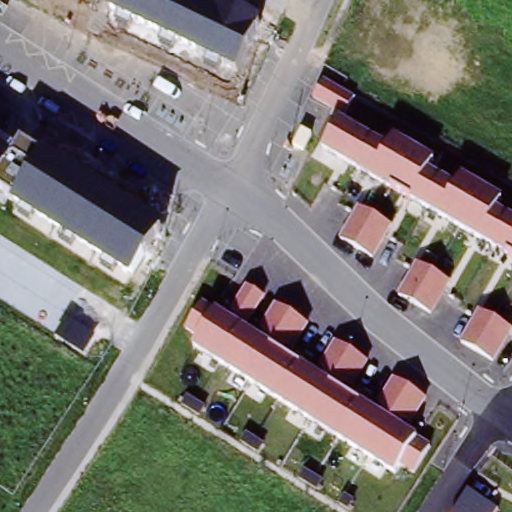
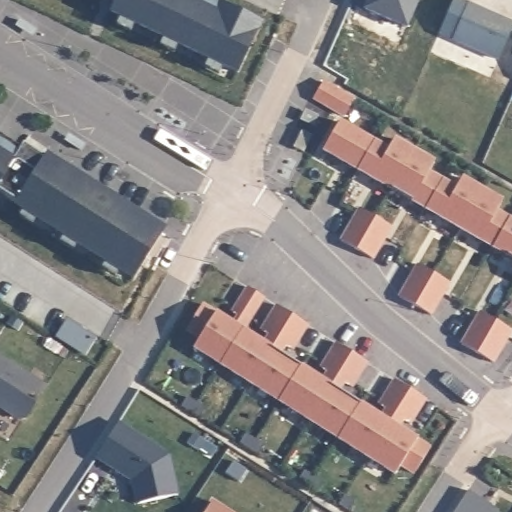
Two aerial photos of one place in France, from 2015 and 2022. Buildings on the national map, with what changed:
unchanged [(262,26),(240,76),(110,17),(115,7),(100,0),(209,0),(262,26)]
new [(407,28),(364,11),(352,4),(354,0),(420,0),(407,28)]
new [(512,24),(512,29),(498,61),(453,41),(469,5),(512,24)]
unchanged [(324,151),(341,120),(390,149),(396,139),(435,162),(429,172),(457,187),(462,177),(504,201),(498,210),(512,217),(512,260),(324,151)]
unchanged [(25,142),(167,232),(140,282),(0,194),(0,141),(18,152),(25,142)]
unchanged [(392,227),(373,260),(340,240),(357,208),(392,227)]
unchanged [(450,282),(430,315),(397,297),(416,263),(450,282)]
unchanged [(232,321),(237,314),(232,309),(246,286),(265,297),(246,328),(263,340),(267,333),(260,327),(277,304),(309,325),(293,349),(287,346),(284,352),(323,377),(327,371),(321,366),(335,342),(367,362),(352,386),(345,382),(343,387),(342,388),(380,412),(384,407),(378,403),(395,378),(427,400),(411,423),(406,420),(402,426),(432,444),(413,474),(403,467),(395,477),(193,349),(202,337),(186,328),(202,302),(232,321)]
unchanged [(512,329),(512,332),(495,363),(460,343),(478,311),(512,329)]
new [(26,420),(20,422),(0,409),(0,359),(46,388),(26,420)]
new [(189,398),(205,408),(200,417),(183,407),(189,398)]
new [(97,458),(118,425),(168,457),(177,497),(138,505),(133,482),(97,458)]
new [(247,436),(264,446),(259,455),(242,444),(247,436)]
new [(305,472),(322,482),(317,491),(300,481),(305,472)]
unchanged [(498,510),(497,512),(455,512),(469,491),(498,510)]
new [(354,502),(348,511),(340,506),(345,497),(354,502)]
new [(208,512),(214,503),(227,512),(208,512)]

